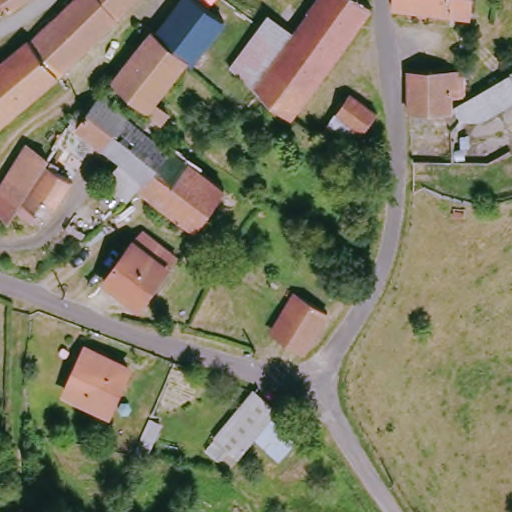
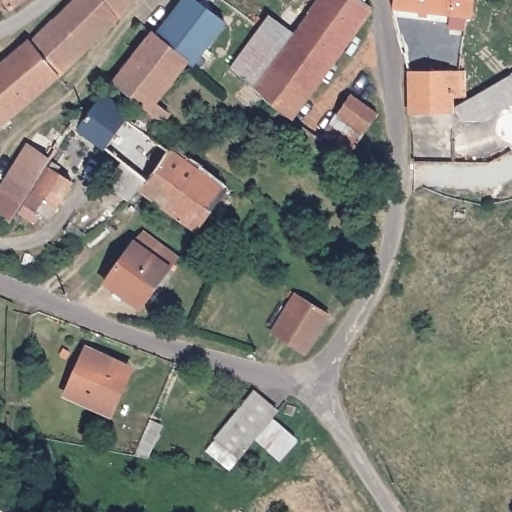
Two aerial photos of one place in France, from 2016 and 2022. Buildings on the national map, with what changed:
unchanged [(11,10),(8,6),(0,13),(0,0),(26,0),(11,10)]
unchanged [(123,7),(60,72),(36,41),(73,0),(115,0),(123,7)]
unchanged [(123,7),(115,0),(129,0),(123,7)]
unchanged [(187,0),(197,0),(224,22),(190,65),(187,63),(156,38),(187,0)]
unchanged [(229,72),(259,34),(269,21),(294,40),(323,0),(355,0),(372,13),(289,122),(269,106),(266,104),(229,72)]
unchanged [(469,18),(394,9),(395,0),(471,0),(469,18)]
unchanged [(187,63),(156,102),(171,114),(163,124),(148,112),(113,85),(153,35),(156,38),(187,63)]
unchanged [(0,123),(0,65),(33,38),(36,41),(60,72),(0,123)]
unchanged [(464,96),(453,96),(453,114),(411,113),(409,73),(466,73),(464,96)]
unchanged [(510,77),(512,76),(512,80),(510,77)]
unchanged [(468,130),(456,107),(510,77),(512,80),(512,104),(468,130)]
unchanged [(351,153),(326,135),(352,95),(379,113),(351,153)]
unchanged [(163,124),(154,136),(173,150),(171,150),(141,191),(135,200),(133,202),(109,183),(123,163),(79,130),(79,129),(74,124),(72,122),(80,112),(86,112),(91,111),(102,96),(126,115),(124,117),(136,127),(148,112),(163,124)]
unchanged [(18,204),(8,221),(0,215),(0,185),(23,147),(45,161),(19,203),(18,204)]
unchanged [(171,150),(173,150),(228,190),(197,231),(141,191),(171,150)]
unchanged [(37,216),(32,224),(17,215),(47,167),(68,180),(44,221),(37,216)]
unchanged [(467,212),(467,222),(453,222),(454,212),(467,212)]
unchanged [(134,313),(101,289),(131,248),(148,260),(157,250),(173,262),(134,313)]
unchanged [(329,313),(307,351),(273,335),(295,297),(329,313)]
unchanged [(64,398),(84,352),(126,371),(106,417),(64,398)]
unchanged [(271,457),(249,437),(233,457),(209,438),(250,391),(271,410),(266,416),(289,437),(271,457)]
unchanged [(287,415),(276,413),(279,400),(290,404),(287,415)]
unchanged [(143,425),(156,431),(144,455),(133,449),(143,425)]
unchanged [(0,512),(0,507),(9,512),(0,512)]

